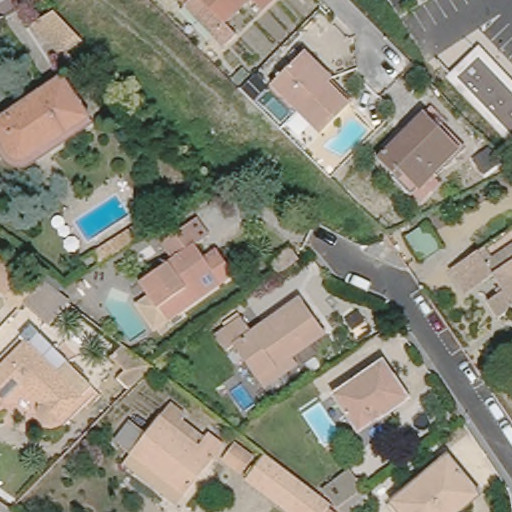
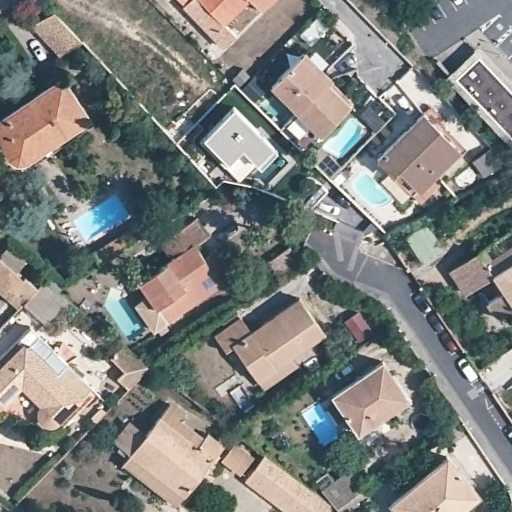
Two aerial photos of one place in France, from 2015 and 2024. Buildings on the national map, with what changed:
unchanged [(186,0),(247,0),(228,20),(238,30),(228,41),(213,26),(211,28),(186,3),(188,1),(186,0)]
unchanged [(266,7),(258,0),(273,0),(266,7)]
unchanged [(58,8),(85,37),(65,50),(37,22),(58,8)]
unchanged [(445,77),(479,46),(512,80),(512,141),(445,77)]
unchanged [(301,54),(329,81),(325,85),(346,107),(319,135),(270,86),(301,54)]
unchanged [(28,155),(25,156),(19,156),(13,154),(0,132),(0,117),(65,73),(91,113),(28,155)]
new [(243,147),(228,160),(225,165),(201,140),(205,136),(234,108),(277,150),(261,166),(243,147)]
unchanged [(439,176),(432,170),(417,185),(403,170),(397,176),(381,159),(426,114),(464,151),(439,176)]
unchanged [(91,255),(133,225),(141,236),(98,263),(91,255)]
unchanged [(140,306),(153,297),(142,282),(173,260),(163,245),(191,225),(203,242),(198,246),(208,260),(223,283),(209,293),(156,330),(140,306)]
unchanged [(470,291),(456,270),(479,253),(494,275),(470,291)]
unchanged [(503,317),(491,301),(507,291),(494,275),(512,262),(512,311),(503,317)]
unchanged [(0,295),(0,264),(30,290),(14,307),(0,295)]
unchanged [(48,275),(61,286),(53,290),(67,301),(48,325),(22,302),(48,275)]
unchanged [(262,385),(255,375),(232,341),(224,346),(214,331),(239,313),(249,327),(298,294),(323,330),(291,352),(295,361),(262,385)]
unchanged [(0,401),(0,359),(9,350),(32,326),(89,383),(55,418),(50,420),(45,420),(41,419),(38,416),(37,414),(35,410),(35,405),(38,400),(19,383),(0,401)]
unchanged [(121,343),(147,363),(149,366),(126,390),(113,378),(119,370),(108,358),(121,343)]
unchanged [(361,430),(353,419),(344,425),(326,400),(381,362),(387,359),(394,370),(412,395),(361,430)]
unchanged [(121,460),(129,450),(113,437),(128,416),(145,429),(168,400),(182,410),(179,412),(203,431),(206,428),(221,441),(181,491),(173,501),(121,460)]
unchanged [(236,470),(219,456),(233,441),(249,455),(236,470)]
unchanged [(331,501),(322,512),(290,512),(244,475),(264,450),(331,501)]
unchanged [(450,459),(482,497),(463,512),(403,512),(396,504),(450,459)]
unchanged [(334,502),(320,485),(348,465),(361,483),(369,495),(344,512),(333,502),(334,502)]

